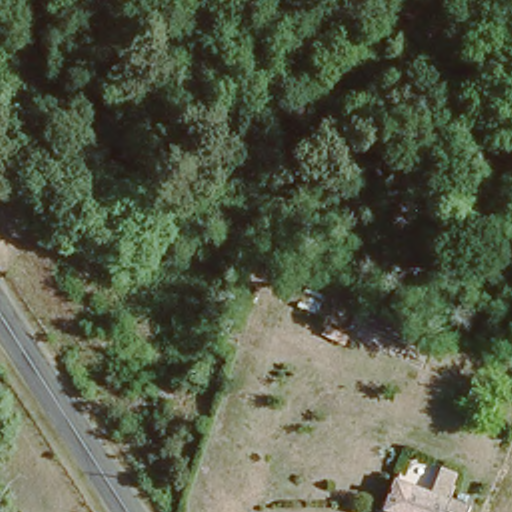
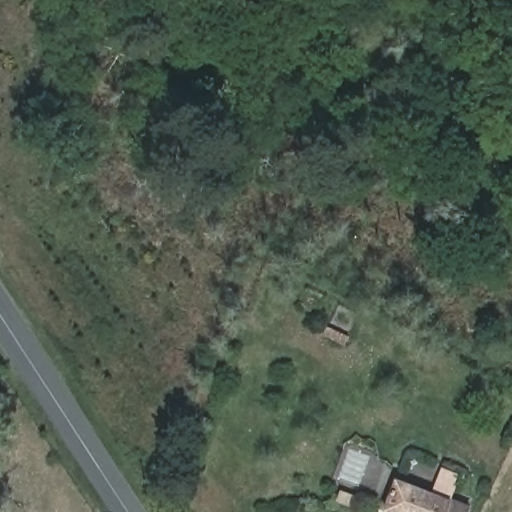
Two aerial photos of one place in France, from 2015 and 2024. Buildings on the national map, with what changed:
unchanged [(492,407),(505,388),(512,392),(512,400),(503,415),(492,407)]
unchanged [(393,508),(401,481),(471,511),(470,512),(402,512),(402,511),(393,508)]

